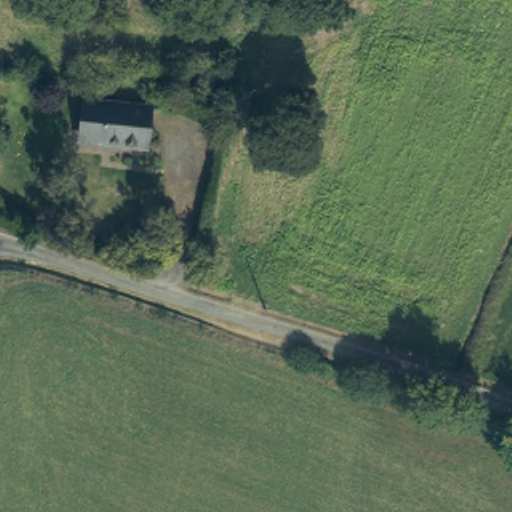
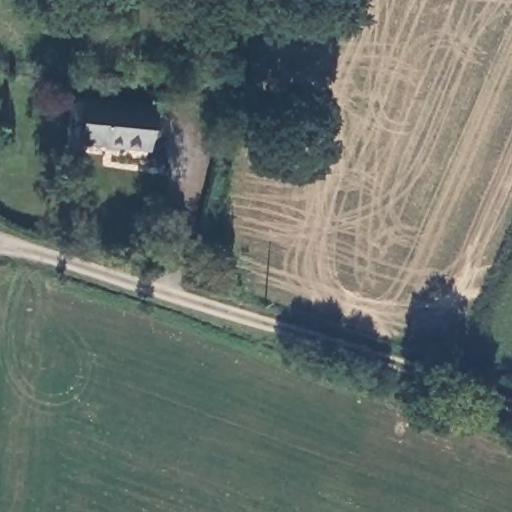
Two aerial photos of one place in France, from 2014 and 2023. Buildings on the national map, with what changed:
unchanged [(154,104),(150,146),(86,140),(91,97),(154,104)]

